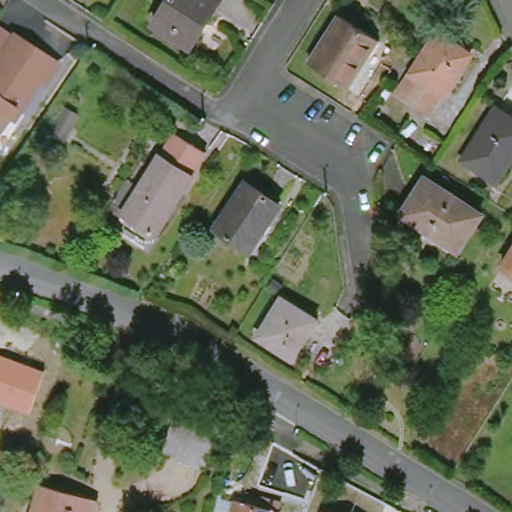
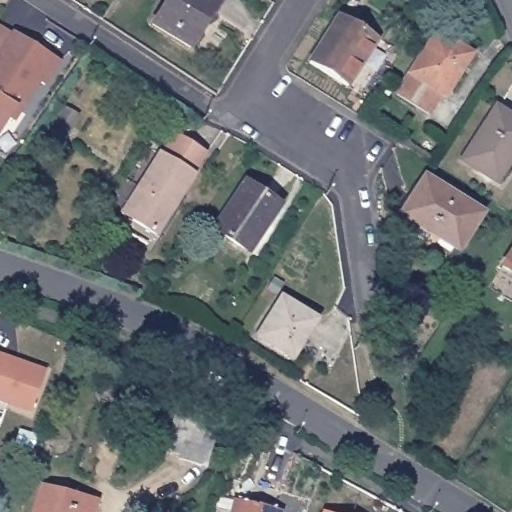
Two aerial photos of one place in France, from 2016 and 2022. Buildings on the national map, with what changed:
unchanged [(177,0),(227,0),(202,41),(166,19),(177,0)]
unchanged [(315,63),(344,18),(378,40),(350,85),(315,63)]
unchanged [(44,84),(25,114),(19,111),(3,136),(0,135),(0,71),(7,59),(0,55),(0,38),(5,30),(20,39),(62,64),(48,88),(44,84)]
unchanged [(397,95),(430,44),(463,64),(454,80),(456,83),(442,105),(427,97),(420,110),(397,95)]
unchanged [(463,159),(498,108),(512,118),(512,154),(497,180),(463,159)]
unchanged [(122,225),(174,146),(205,166),(173,220),(169,218),(151,245),(122,225)]
unchanged [(404,214),(426,178),(482,214),(459,250),(404,214)]
unchanged [(221,232),(250,185),(283,207),(271,225),(267,223),(251,249),(221,232)]
unchanged [(506,268),(512,258),(512,271),(506,268)]
unchanged [(262,335),(286,299),(320,322),(307,343),(304,342),(296,356),(262,335)]
unchanged [(0,399),(0,354),(44,369),(27,408),(0,399)]
unchanged [(179,465),(180,461),(164,454),(170,432),(174,419),(217,433),(213,447),(206,472),(179,465)]
unchanged [(42,487),(100,504),(97,512),(34,512),(42,487)]
unchanged [(236,502),(272,512),(233,512),(236,502)]
unchanged [(326,509),(334,512),(325,512),(326,509)]

